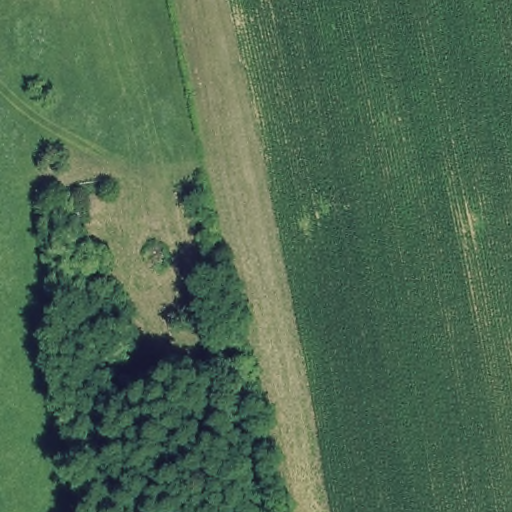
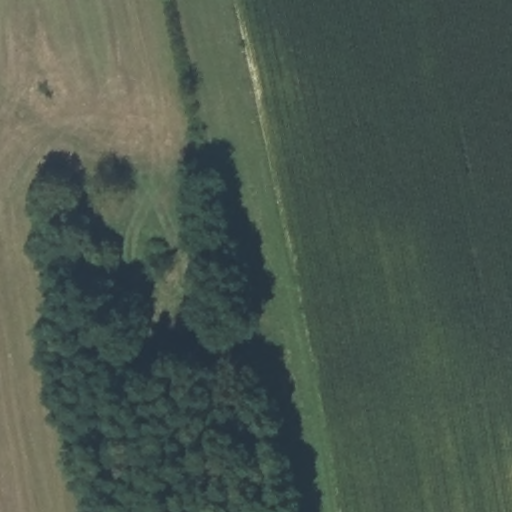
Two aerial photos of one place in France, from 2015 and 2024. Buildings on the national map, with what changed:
unchanged [(79,260),(51,265),(41,205),(71,201),(79,260)]

